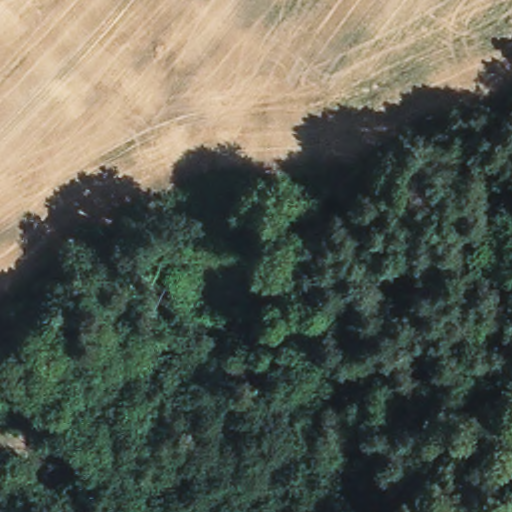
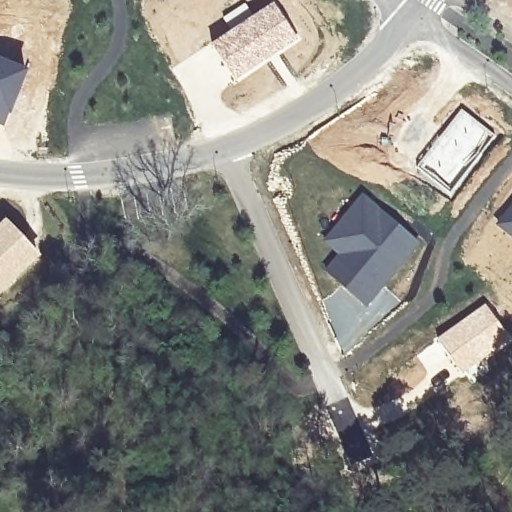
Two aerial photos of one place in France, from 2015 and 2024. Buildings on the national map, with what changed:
new [(231,30),(222,18),(245,3),(254,15),(275,3),(299,39),(237,81),(212,44),(231,30)]
new [(5,127),(0,125),(0,59),(29,71),(5,127)]
new [(365,194),(419,240),(367,303),(328,269),(342,253),(327,240),(365,194)]
new [(512,201),(512,237),(495,224),(512,201)]
new [(42,257),(0,295),(0,224),(6,219),(42,257)]
new [(485,303),(512,338),(512,340),(464,374),(437,339),(485,303)]

